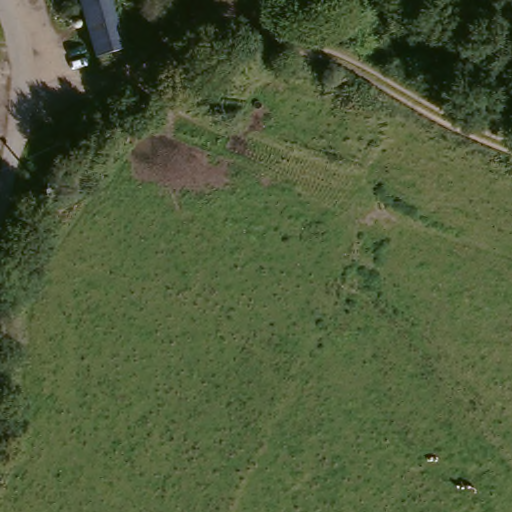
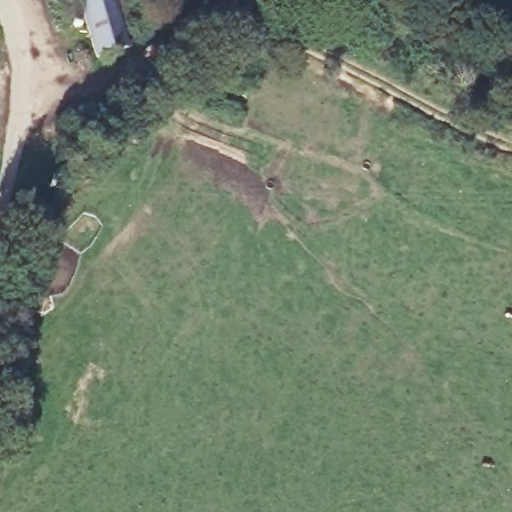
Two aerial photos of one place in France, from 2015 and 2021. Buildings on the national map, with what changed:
unchanged [(125,43),(96,51),(81,0),(112,0),(120,26),(125,43)]

